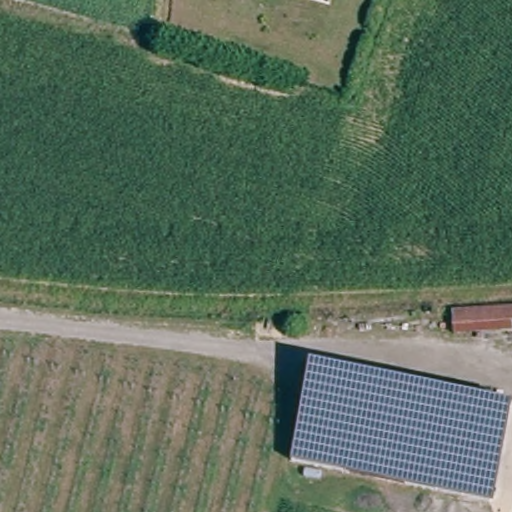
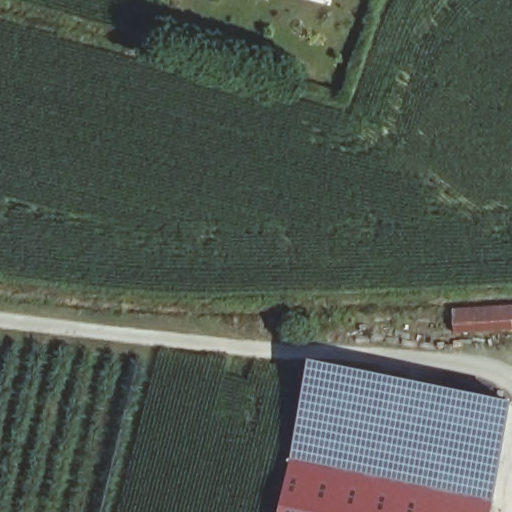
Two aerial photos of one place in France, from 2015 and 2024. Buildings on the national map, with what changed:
unchanged [(512,333),(462,337),(460,310),(512,305),(512,333)]
unchanged [(512,412),(498,487),(496,499),(332,468),(302,463),(320,365),(512,401),(512,412)]
new [(332,468),(496,499),(495,504),(493,512),(283,512),(293,462),(302,463),(332,468)]

